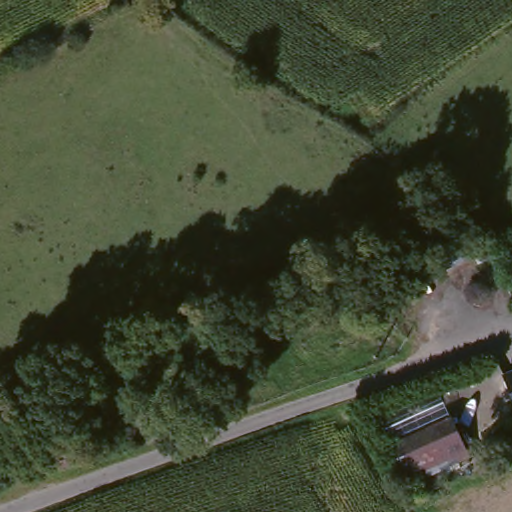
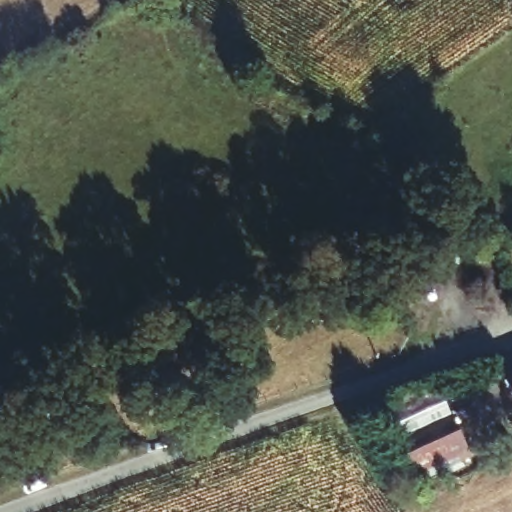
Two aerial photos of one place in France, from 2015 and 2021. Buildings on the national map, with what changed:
unchanged [(512,375),(512,391),(507,378),(512,375)]
unchanged [(406,436),(410,444),(454,426),(470,465),(411,489),(391,442),(406,436)]

